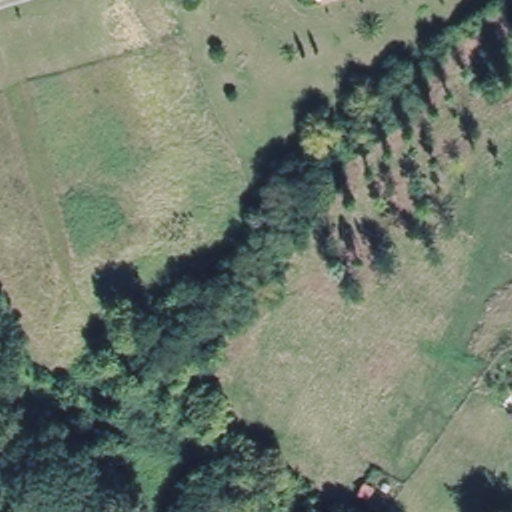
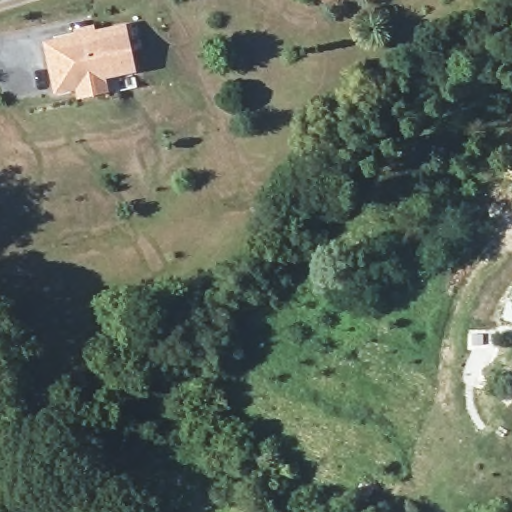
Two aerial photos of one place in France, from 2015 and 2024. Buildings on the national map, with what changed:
new [(107,77),(109,91),(76,99),(74,91),(53,95),(42,41),(75,34),(73,29),(93,25),(95,30),(126,24),(136,72),(107,77)]

